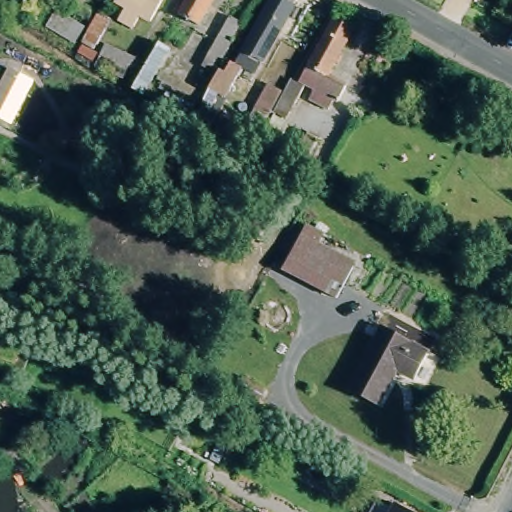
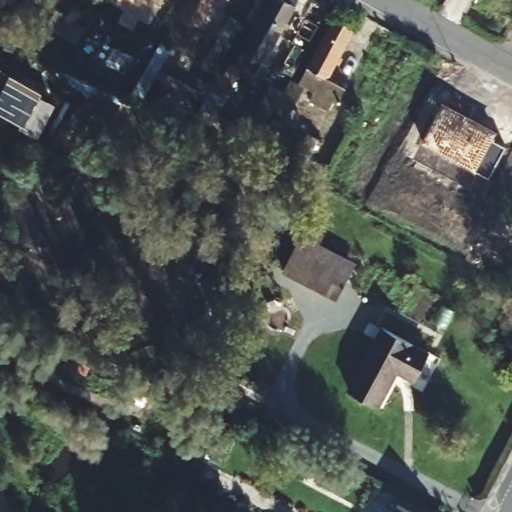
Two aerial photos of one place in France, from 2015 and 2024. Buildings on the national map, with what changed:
unchanged [(117,3),(118,0),(163,0),(151,21),(117,3)]
unchanged [(179,14),(187,0),(213,0),(198,25),(179,14)]
unchanged [(244,84),(248,78),(236,72),(276,0),(299,0),(251,87),(244,84)]
unchanged [(236,72),(239,74),(224,98),(216,95),(213,101),(205,96),(208,90),(198,85),(208,68),(203,65),(230,15),(243,21),(226,56),(241,63),(236,72)]
unchanged [(301,83),(333,18),(355,31),(328,79),(346,89),(337,104),(308,86),(291,115),(279,108),(294,79),(301,83)]
unchanged [(141,59),(136,71),(129,68),(124,80),(96,66),(106,42),(141,59)]
unchanged [(162,100),(166,90),(153,81),(146,96),(133,89),(158,42),(171,48),(160,70),(203,92),(192,114),(162,100)]
unchanged [(13,125),(0,119),(0,86),(9,67),(35,81),(13,125)]
new [(505,146),(489,176),(420,141),(442,100),(497,130),(493,138),(505,146)]
unchanged [(334,301),(321,294),(281,273),(305,227),(322,236),(314,252),(336,263),(351,271),(334,301)]
unchanged [(384,326),(429,350),(414,377),(398,368),(377,405),(349,390),(384,326)]

